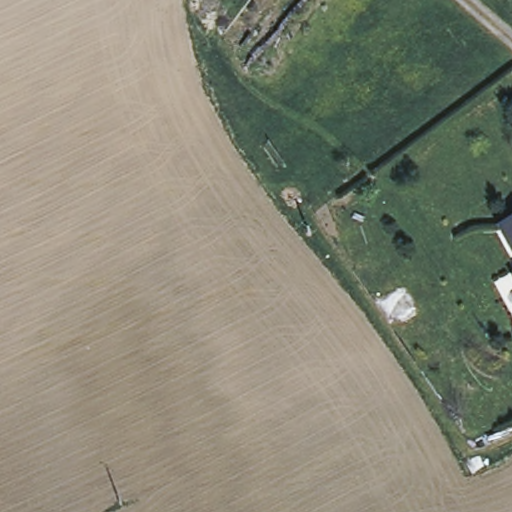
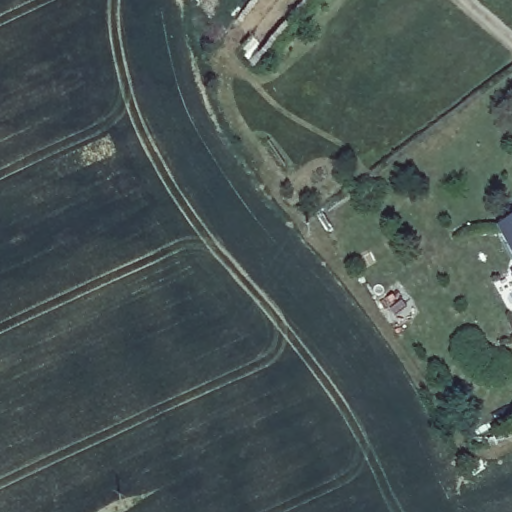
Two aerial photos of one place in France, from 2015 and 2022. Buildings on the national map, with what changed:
unchanged [(512,220),(512,252),(499,227),(512,220)]

